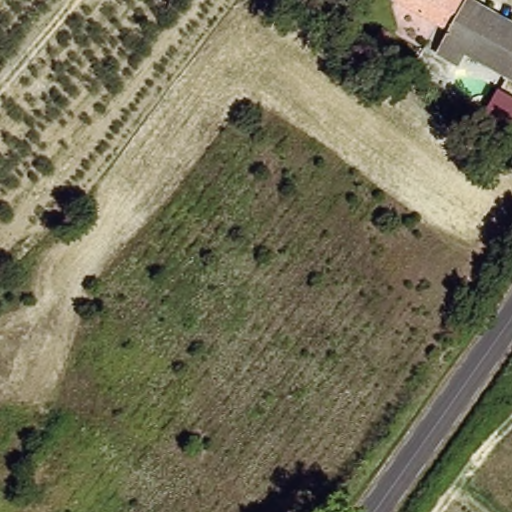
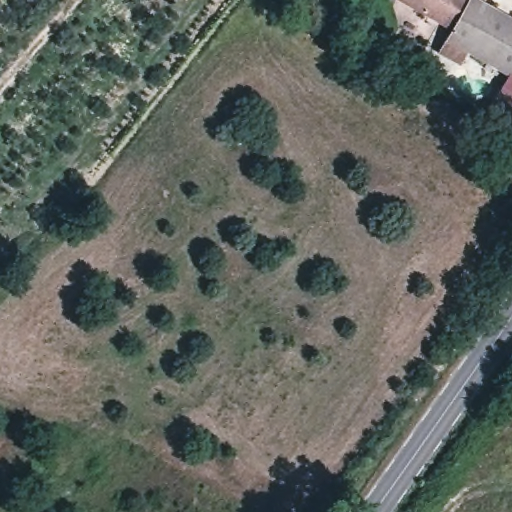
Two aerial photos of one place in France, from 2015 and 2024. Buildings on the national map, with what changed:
unchanged [(512,17),(512,80),(466,56),(443,45),(445,32),(393,5),(395,0),(482,0),(512,17)]
unchanged [(512,113),(493,102),(501,85),(512,91),(512,113)]

